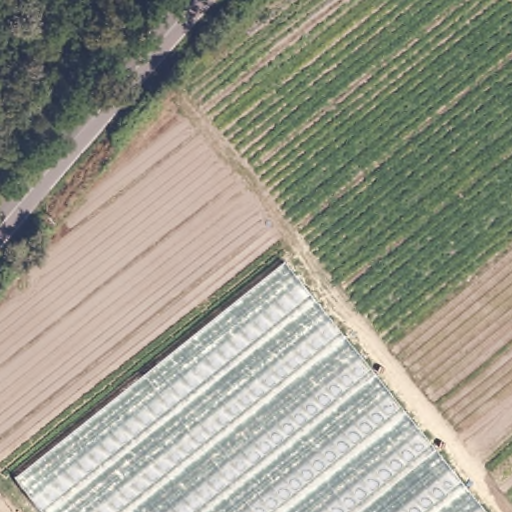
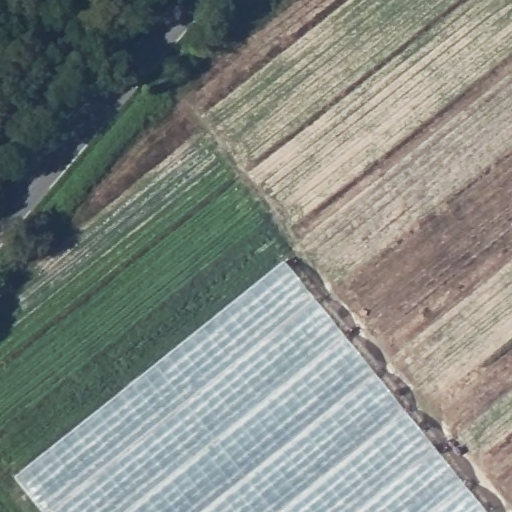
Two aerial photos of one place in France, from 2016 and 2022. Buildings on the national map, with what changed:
unchanged [(17,480),(285,262),(488,512),(44,512),(17,480)]

